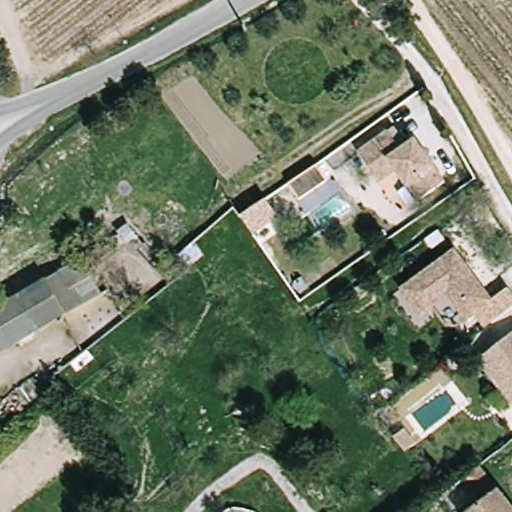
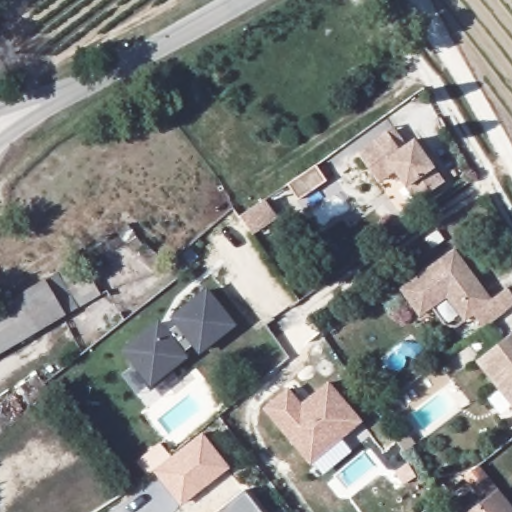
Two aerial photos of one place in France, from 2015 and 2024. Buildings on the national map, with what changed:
unchanged [(377,179),(356,151),(385,130),(398,148),(412,138),(443,180),(416,199),(393,168),(377,179)]
unchanged [(298,168),(309,183),(281,204),(270,188),(298,168)]
unchanged [(452,251),(489,302),(506,290),(512,298),(512,308),(483,330),(470,315),(463,321),(445,297),(417,317),(398,291),(452,251)]
unchanged [(77,254),(97,288),(62,310),(41,277),(77,254)]
unchanged [(41,277),(62,310),(35,327),(14,293),(41,277)]
new [(158,321),(167,332),(176,326),(170,318),(207,290),(236,326),(199,355),(192,345),(183,352),(187,358),(150,388),(122,350),(158,321)]
unchanged [(0,321),(0,302),(14,293),(35,327),(12,341),(0,321)]
unchanged [(0,349),(0,321),(12,341),(0,349)]
unchanged [(512,332),(512,409),(475,361),(512,332)]
new [(301,403),(328,381),(362,422),(309,466),(262,409),(288,388),(301,403)]
new [(202,432),(230,468),(180,506),(152,472),(147,475),(136,461),(160,443),(172,456),(202,432)]
unchanged [(503,512),(460,512),(471,503),(456,484),(469,472),(503,512)]
new [(260,512),(217,512),(244,491),(260,512)]

